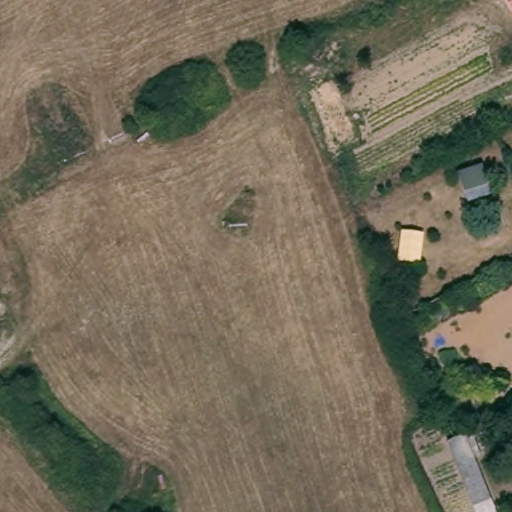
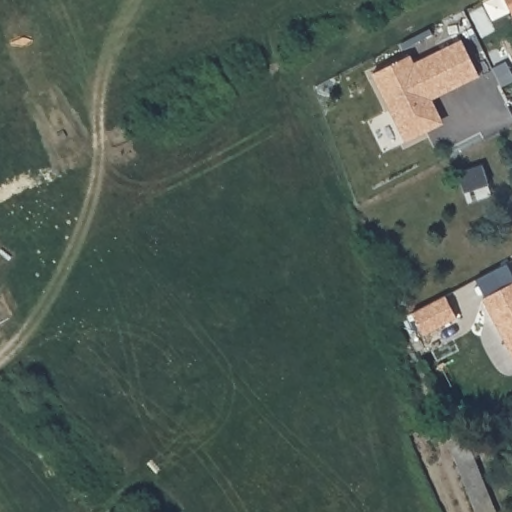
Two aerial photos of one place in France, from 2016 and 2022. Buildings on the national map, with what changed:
unchanged [(498,0),(512,0),(512,22),(498,0)]
new [(405,141),(372,74),(410,55),(414,62),(462,39),(479,75),(432,99),(443,122),(405,141)]
demolished [(332,145),(314,89),(337,79),(361,138),(332,145)]
new [(485,297),(476,279),(507,264),(512,271),(512,354),(481,298),(485,297)]
unchanged [(469,436),(496,512),(478,512),(450,444),(469,436)]

